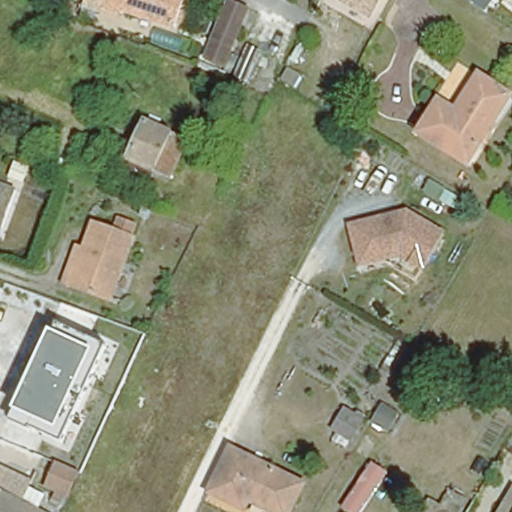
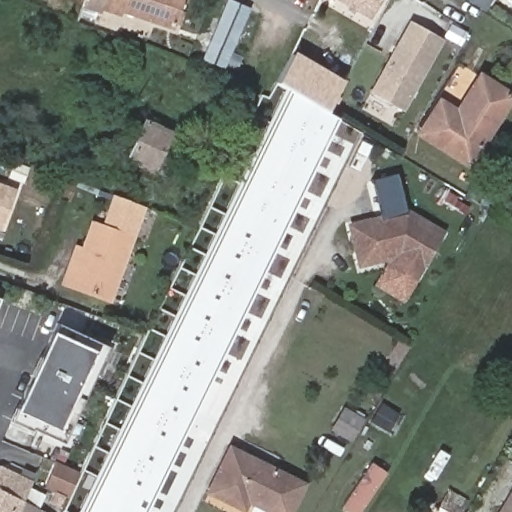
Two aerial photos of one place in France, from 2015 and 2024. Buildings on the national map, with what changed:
unchanged [(82,0),(178,0),(167,27),(98,1),(97,6),(82,0)]
unchanged [(329,0),(377,0),(365,22),(329,0)]
new [(471,0),(494,0),(487,10),(471,0)]
unchanged [(205,62),(232,3),(251,11),(225,71),(205,62)]
new [(408,20),(443,40),(405,110),(370,90),(408,20)]
new [(285,91),(275,85),(291,52),(344,77),(328,111),(340,117),(148,512),(80,512),(285,91)]
unchanged [(512,109),(478,162),(431,132),(451,101),(467,112),(490,77),(512,90),(512,109)]
unchanged [(163,170),(151,165),(147,175),(121,163),(143,115),(169,126),(166,132),(178,137),(163,170)]
unchanged [(16,189),(2,226),(0,225),(0,182),(16,189)]
unchanged [(424,266),(402,254),(358,265),(350,226),(404,212),(444,235),(424,266)]
unchanged [(64,286),(71,268),(78,251),(85,253),(94,229),(113,237),(118,222),(136,230),(131,244),(106,303),(64,286)]
demolished [(6,287),(0,310),(0,286),(6,287)]
unchanged [(64,442),(32,427),(31,430),(12,418),(16,407),(13,407),(48,328),(56,332),(60,323),(108,346),(64,442)]
unchanged [(351,445),(328,431),(343,407),(366,420),(351,445)]
unchanged [(369,433),(380,440),(374,451),(362,444),(369,433)]
unchanged [(69,498),(43,488),(54,462),(81,472),(69,498)]
unchanged [(292,512),(220,512),(206,506),(227,463),(298,499),(292,512)]
unchanged [(372,464),(386,473),(361,512),(350,512),(344,507),(372,464)]
unchanged [(2,467),(32,482),(23,502),(43,512),(0,512),(0,467),(2,467)]
unchanged [(512,486),(512,512),(498,512),(512,486)]
unchanged [(439,507),(444,498),(462,508),(460,512),(437,512),(439,507)]

